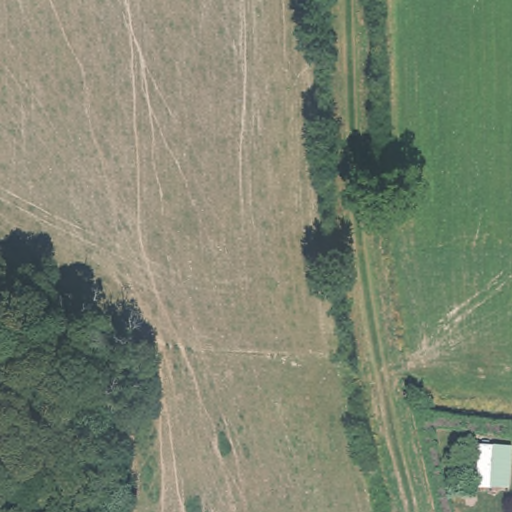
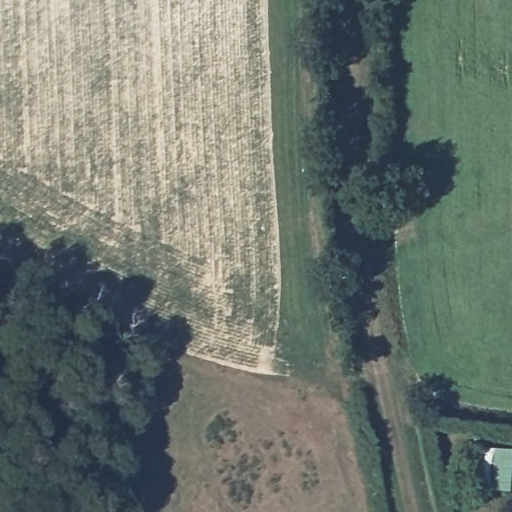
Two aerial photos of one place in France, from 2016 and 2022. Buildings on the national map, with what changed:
unchanged [(476,448),(494,450),(491,492),(473,490),(476,448)]

